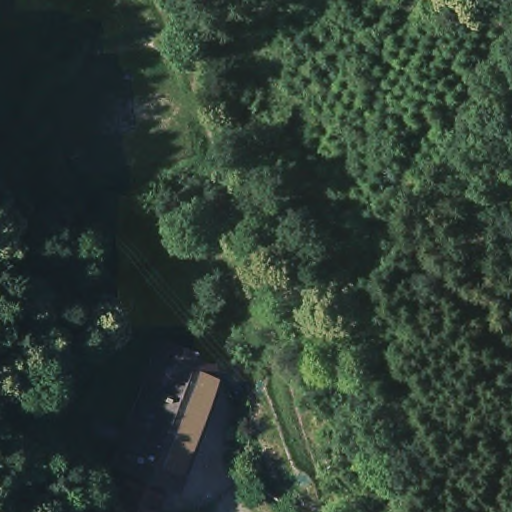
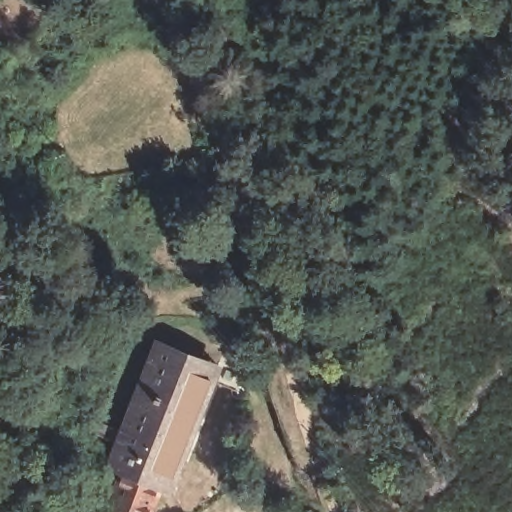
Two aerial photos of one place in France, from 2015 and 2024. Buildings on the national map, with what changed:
unchanged [(151,341),(218,368),(229,372),(236,401),(209,389),(168,494),(159,491),(114,473),(101,467),(151,341)]
unchanged [(159,491),(151,512),(98,512),(114,473),(159,491)]

